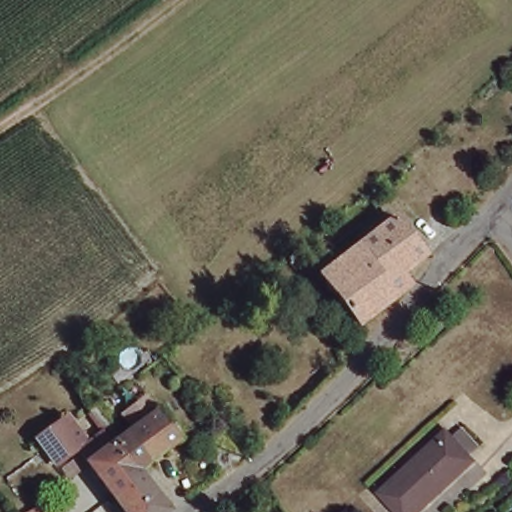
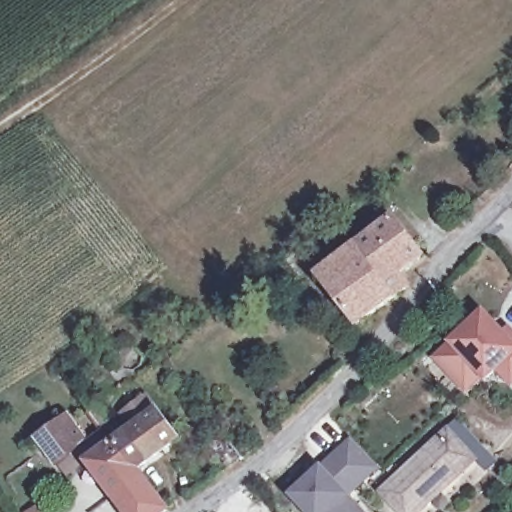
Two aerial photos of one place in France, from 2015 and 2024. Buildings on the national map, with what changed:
unchanged [(362,197),(367,204),(350,216),(345,210),(362,197)]
unchanged [(422,260),(399,277),(407,288),(404,291),(405,293),(358,330),(320,280),(365,245),(360,239),(387,219),(391,225),(393,223),(422,260)]
new [(433,356),(478,314),(497,334),(502,329),(512,339),(512,376),(507,381),(492,365),(481,376),(477,371),(461,386),(455,380),(433,356)]
unchanged [(162,418),(164,417),(184,443),(140,474),(120,449),(116,443),(94,415),(102,409),(127,444),(140,434),(129,420),(152,403),(162,418)]
unchanged [(116,443),(120,449),(140,474),(147,483),(122,502),(95,466),(85,452),(62,469),(60,465),(42,441),(65,425),(70,432),(81,424),(97,444),(103,453),(116,443)]
unchanged [(222,431),(242,456),(221,473),(202,448),(222,431)]
unchanged [(396,512),(382,496),(448,435),(453,441),(464,432),(479,449),(469,458),(475,464),(423,512),(396,512)]
new [(334,450),(347,438),(372,466),(360,477),(341,495),(357,512),(302,512),(286,495),(334,450)]
unchanged [(170,512),(129,512),(122,502),(147,483),(170,512)]

